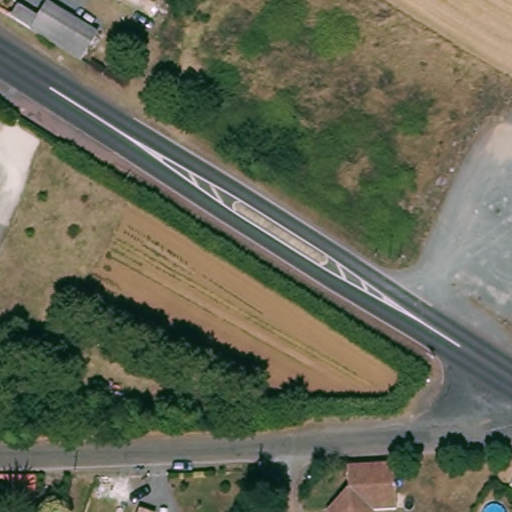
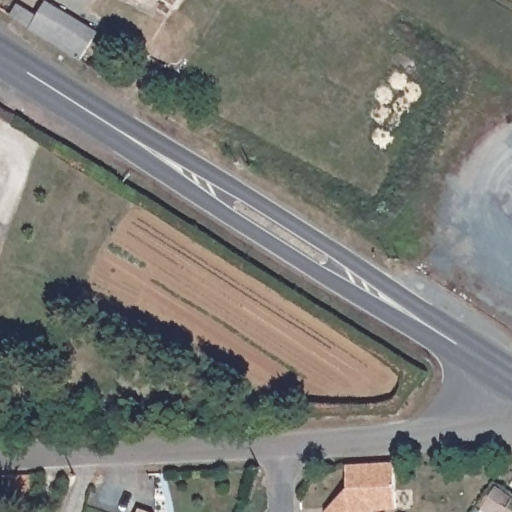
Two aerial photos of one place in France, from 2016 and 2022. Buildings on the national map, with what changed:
unchanged [(43,33),(8,11),(15,0),(49,0),(59,7),(43,33)]
unchanged [(43,33),(59,7),(93,29),(76,54),(43,33)]
unchanged [(394,512),(327,512),(345,492),(344,468),(391,466),(394,512)]
unchanged [(34,503),(6,503),(8,475),(36,476),(34,503)]
unchanged [(143,512),(140,512),(140,511),(143,512)]

